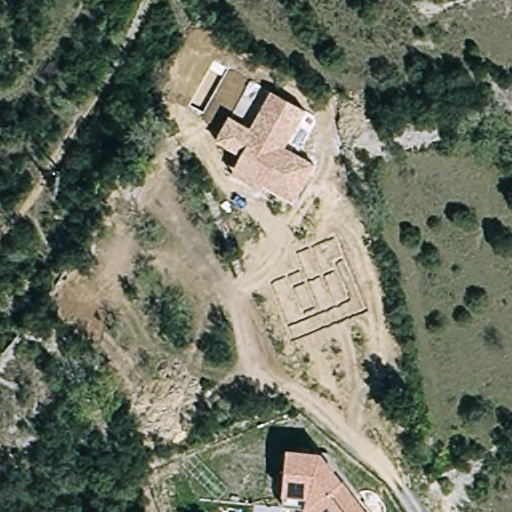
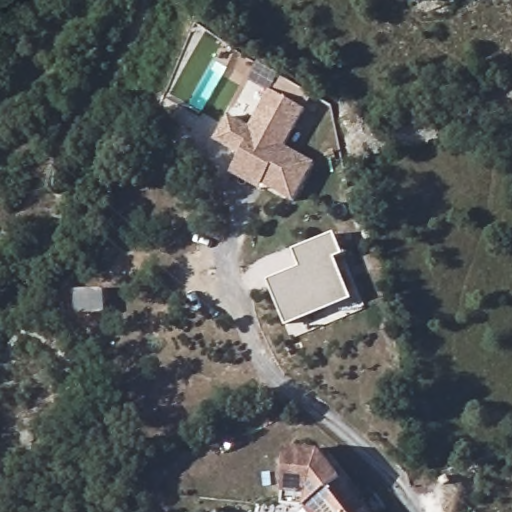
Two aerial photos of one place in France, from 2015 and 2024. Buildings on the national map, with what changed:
unchanged [(230,118),(250,129),(272,91),(308,111),(288,149),(317,165),(296,203),(265,186),(262,192),(231,175),(240,158),(216,143),(230,118)]
new [(268,281),(300,268),(294,250),(337,234),(346,257),(337,259),(353,300),(286,328),(268,281)]
unchanged [(365,512),(308,512),(307,509),(284,508),(288,453),(321,456),(365,512)]

